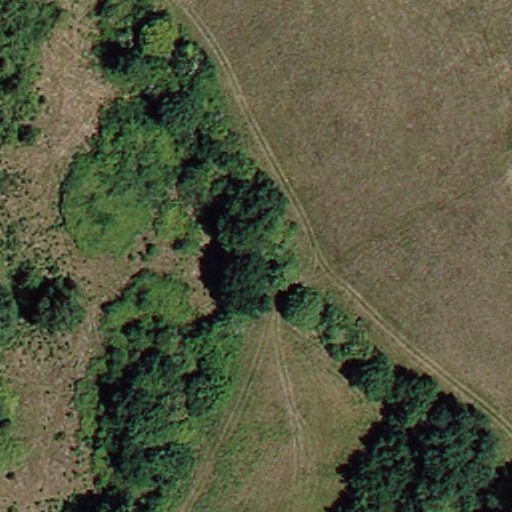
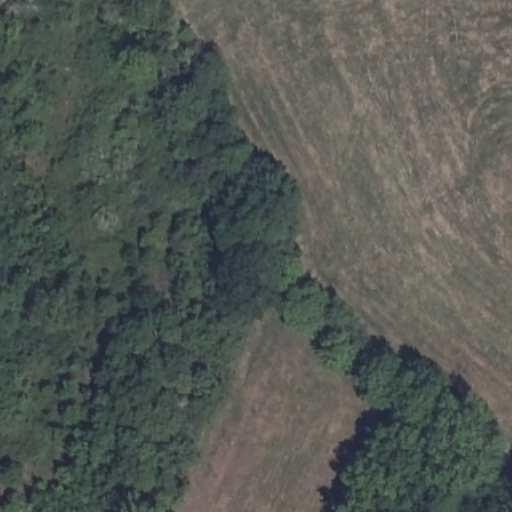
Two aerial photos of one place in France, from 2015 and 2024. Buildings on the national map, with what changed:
[]

